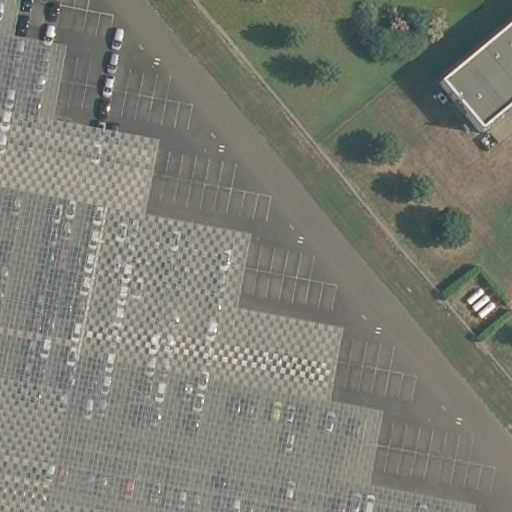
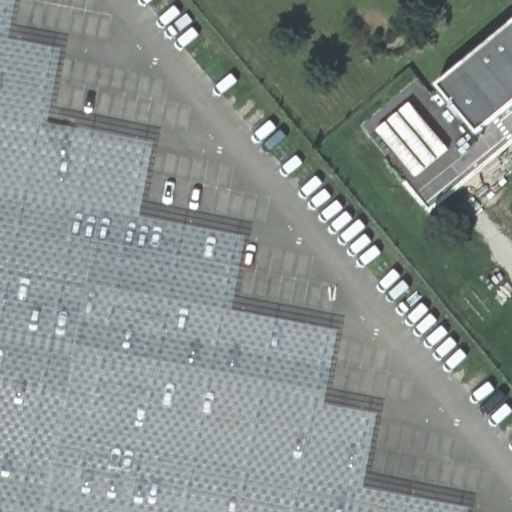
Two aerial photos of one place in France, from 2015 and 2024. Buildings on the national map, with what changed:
unchanged [(440,85),(512,24),(512,107),(481,133),(440,85)]

